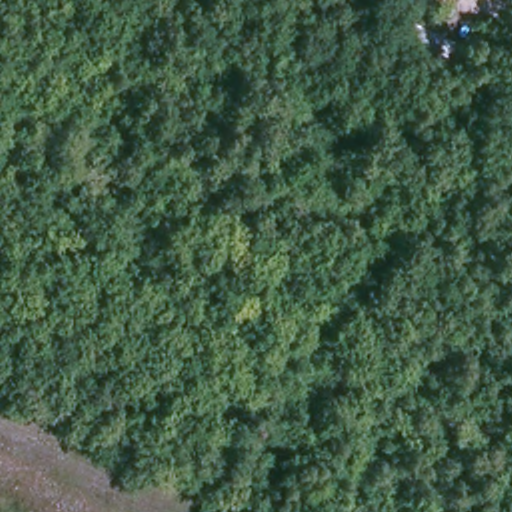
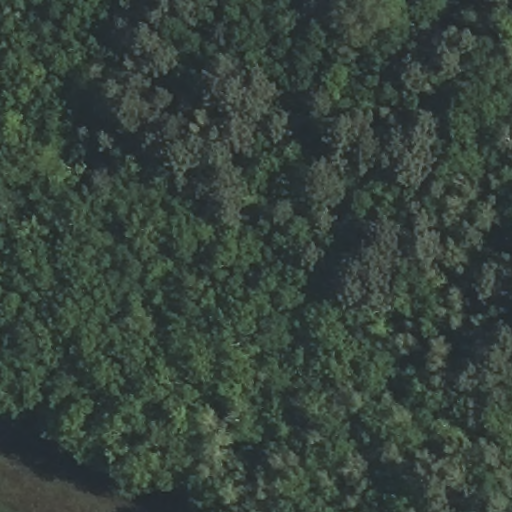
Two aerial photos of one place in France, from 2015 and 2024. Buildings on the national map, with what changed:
unchanged [(440,65),(391,44),(399,19),(447,41),(440,65)]

